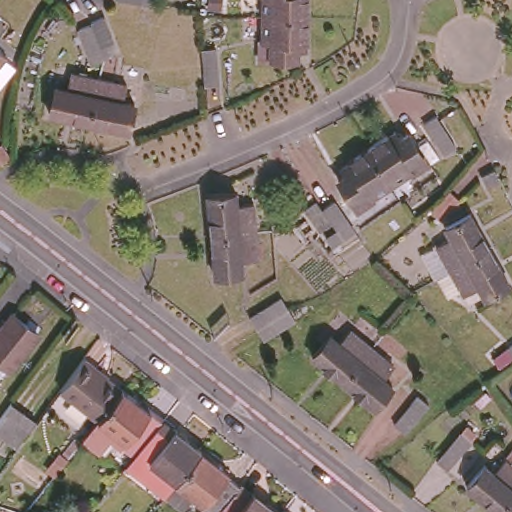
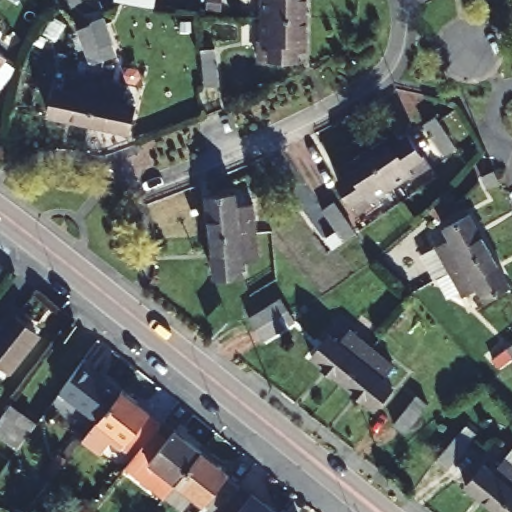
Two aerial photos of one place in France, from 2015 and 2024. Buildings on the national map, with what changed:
unchanged [(116,0),(156,0),(155,7),(116,2),(116,0)]
unchanged [(306,17),(283,17),(263,17),(263,0),(306,0),(306,17)]
unchanged [(297,52),(297,59),(272,59),(272,63),(258,63),(258,42),(263,41),(263,17),(283,17),(306,17),(305,40),(304,40),(304,52),(297,52)]
unchanged [(88,64),(75,30),(87,25),(88,25),(97,47),(101,46),(110,42),(113,54),(102,58),(100,59),(88,64)]
unchanged [(0,48),(9,55),(0,66),(0,48)]
unchanged [(201,57),(200,50),(215,49),(218,86),(204,89),(201,57)]
unchanged [(88,127),(49,119),(55,92),(66,94),(70,78),(98,84),(88,127)]
unchanged [(127,89),(123,106),(133,108),(128,135),(88,127),(98,84),(127,89)]
unchanged [(457,147),(445,154),(425,123),(436,116),(457,147)]
unchanged [(426,158),(432,156),(438,165),(418,178),(416,174),(397,187),(377,158),(372,150),(391,137),(392,138),(401,132),(405,139),(412,134),(426,158)]
unchanged [(372,150),(377,158),(397,187),(378,200),(381,202),(362,215),(355,205),(358,202),(342,180),(348,177),(344,171),(353,165),(352,163),(372,150)]
unchanged [(482,177),(494,172),(500,184),(487,189),(482,177)]
unchanged [(454,191),(463,200),(447,219),(437,210),(454,191)]
unchanged [(202,195),(230,192),(230,204),(248,202),(251,231),(207,236),(202,195)]
unchanged [(318,232),(302,209),(313,201),(330,224),(318,232)]
unchanged [(325,238),(337,230),(333,224),(322,209),(333,202),(344,217),(354,234),(342,241),(332,248),(325,238)]
unchanged [(450,227),(473,215),(492,250),(455,271),(440,245),(455,237),(450,227)]
unchanged [(251,231),(254,260),(236,262),(237,272),(210,275),(207,236),(251,231)]
unchanged [(511,285),(488,297),(483,288),(468,296),(455,271),(492,250),(511,285)]
unchanged [(277,316),(258,326),(252,316),(284,296),(291,307),(298,318),(267,339),(260,327),(277,316)]
unchanged [(13,363),(4,356),(0,361),(0,327),(15,308),(41,328),(13,363)]
unchanged [(331,336),(343,322),(366,342),(337,375),(307,350),(325,330),(331,336)]
unchanged [(388,361),(377,373),(385,381),(369,401),(337,375),(366,342),(388,361)]
unchanged [(505,348),(512,344),(512,359),(505,348)]
unchanged [(87,358),(125,390),(103,417),(66,387),(87,358)]
unchanged [(142,452),(120,434),(105,452),(87,438),(103,417),(125,390),(127,389),(167,421),(142,452)]
unchanged [(405,432),(394,423),(417,394),(428,402),(405,432)]
unchanged [(35,422),(16,450),(0,438),(0,418),(10,404),(35,422)]
unchanged [(170,496),(130,466),(142,452),(167,421),(205,451),(170,496)]
unchanged [(447,469),(436,461),(460,431),(471,440),(447,469)]
unchanged [(232,472),(230,475),(242,484),(220,512),(201,512),(208,503),(197,495),(186,508),(170,496),(205,451),(232,472)]
unchanged [(462,480),(478,460),(486,466),(498,453),(512,465),(512,483),(492,506),(462,480)]
unchanged [(500,512),(492,506),(512,483),(512,512),(500,512)]
unchanged [(254,493),(256,492),(282,512),(220,512),(242,484),(254,493)]

